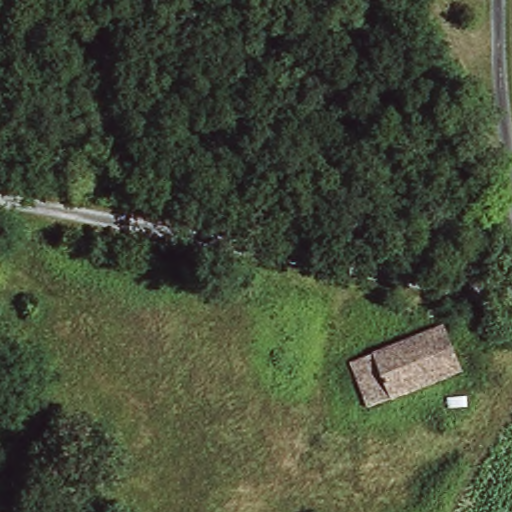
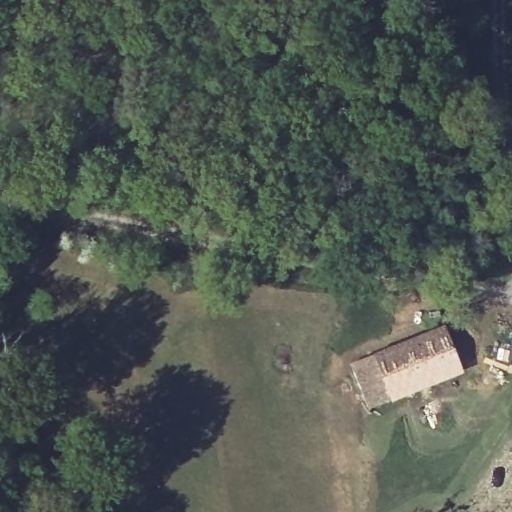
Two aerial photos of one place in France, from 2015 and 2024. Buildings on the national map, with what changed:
unchanged [(372,410),(352,369),(437,326),(458,367),(372,410)]

